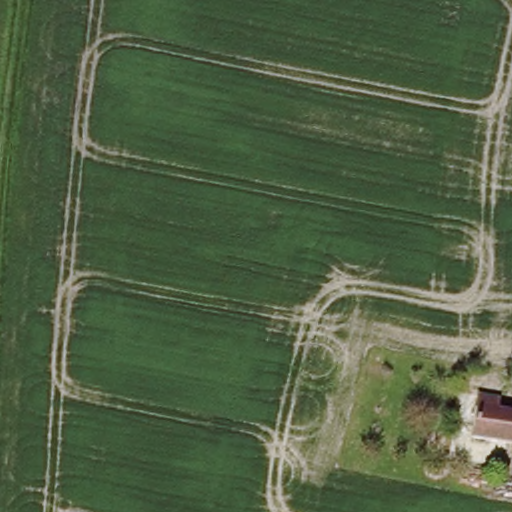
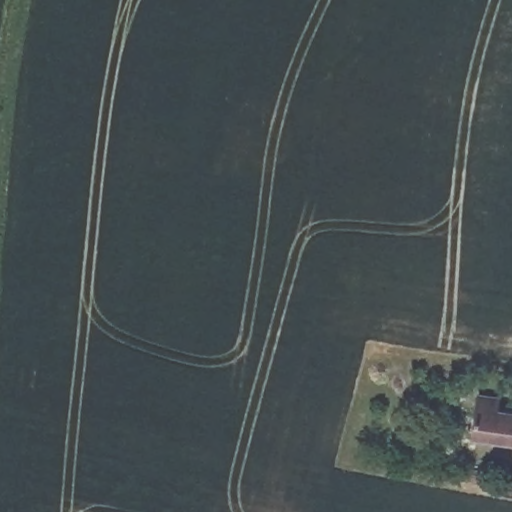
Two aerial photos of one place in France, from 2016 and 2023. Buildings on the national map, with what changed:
unchanged [(512,412),(512,445),(469,439),(474,407),(512,412)]

